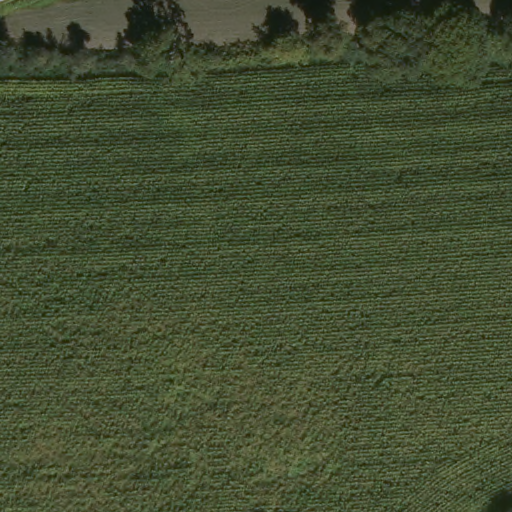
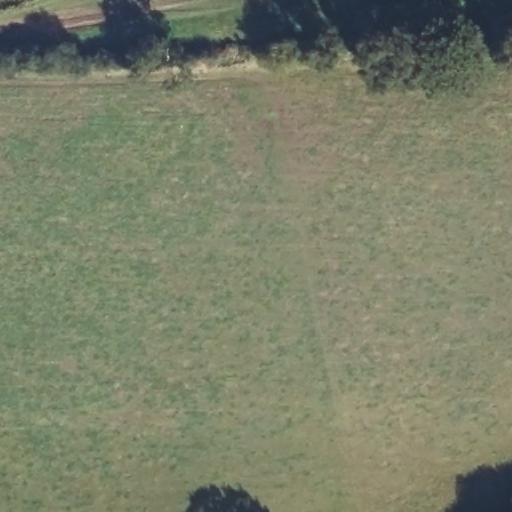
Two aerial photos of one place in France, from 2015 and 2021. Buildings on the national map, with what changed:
[]

